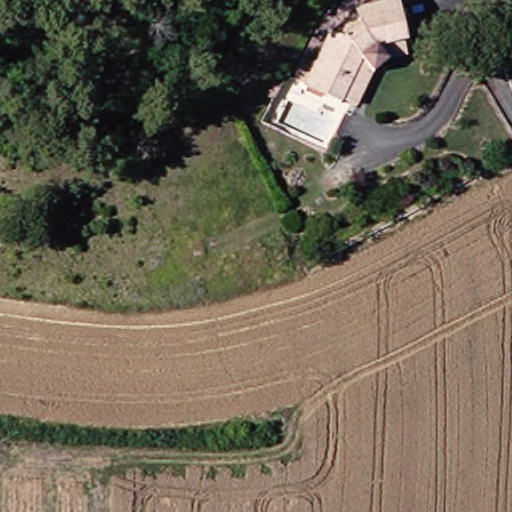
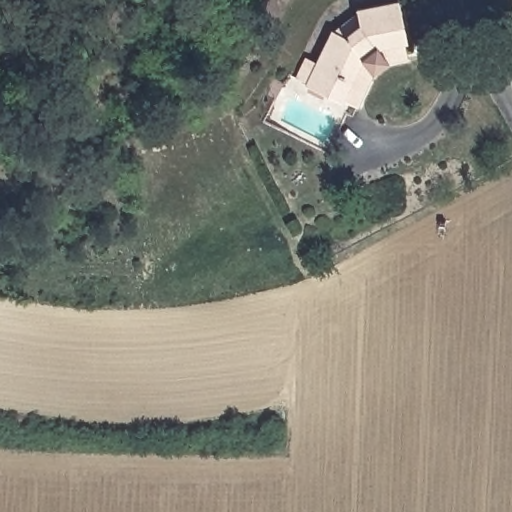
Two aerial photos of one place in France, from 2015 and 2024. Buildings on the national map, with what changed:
unchanged [(333,101),(292,80),(316,32),(335,17),(388,4),(396,49),(372,52),(374,54),(366,71),(349,109),(333,101)]

